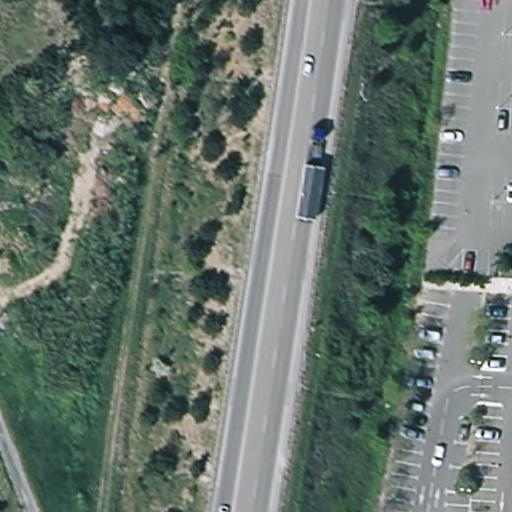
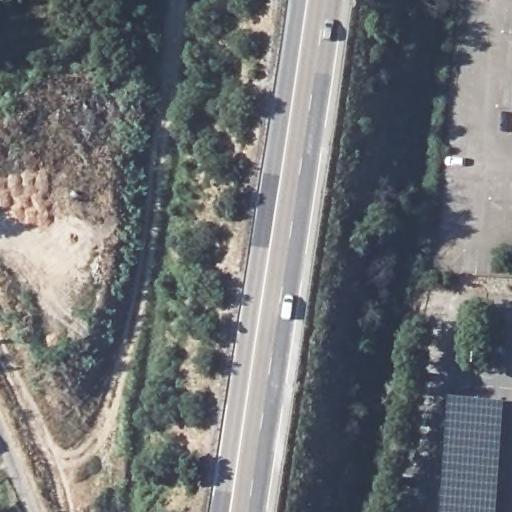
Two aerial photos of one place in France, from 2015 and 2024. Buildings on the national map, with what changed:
new [(499,512),(444,512),(453,399),(506,405),(499,512)]

